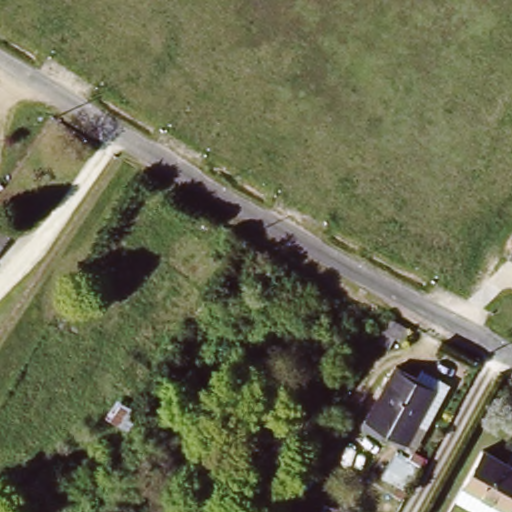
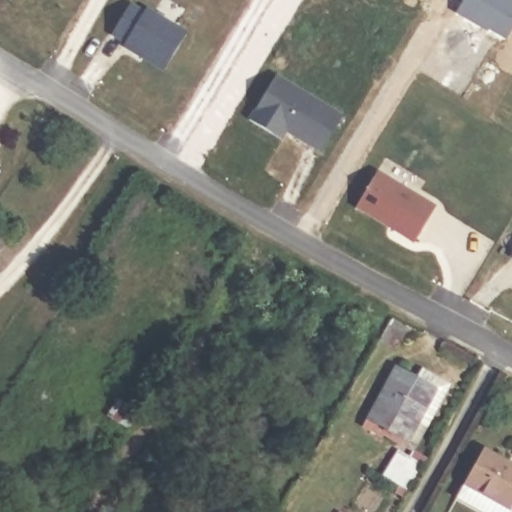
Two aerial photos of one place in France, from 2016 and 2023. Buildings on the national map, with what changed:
new [(134,5),(147,14),(150,10),(190,34),(166,72),(125,48),(127,44),(115,37),(134,5)]
new [(281,141),(250,122),(275,78),(342,118),(321,153),(300,141),(286,132),(281,141)]
new [(378,172),(436,207),(415,243),(356,208),(378,172)]
unchanged [(5,244),(0,252),(0,241),(5,244)]
unchanged [(512,254),(512,257),(510,256),(512,254)]
unchanged [(399,369),(438,390),(410,443),(371,422),(399,369)]
unchanged [(463,486),(481,451),(512,467),(512,504),(508,510),(463,486)]

